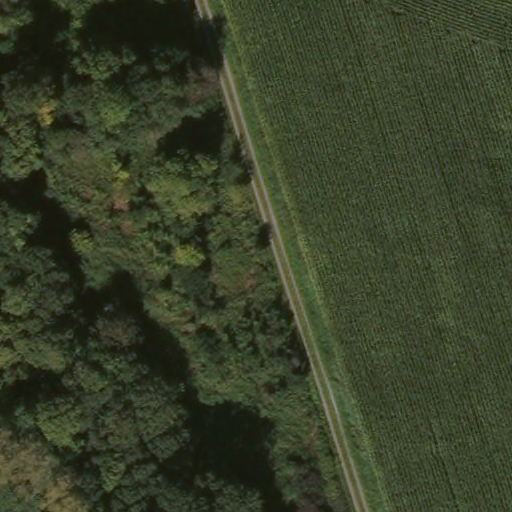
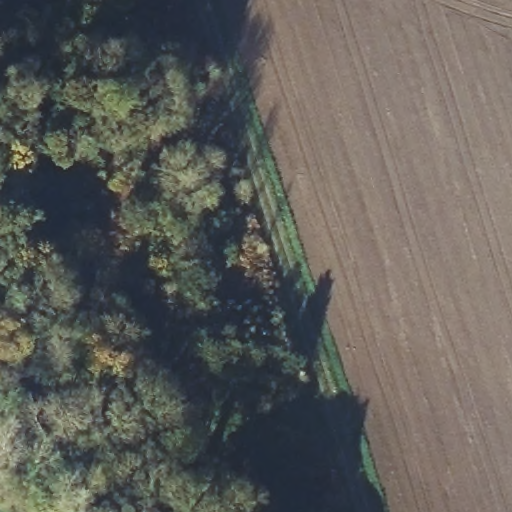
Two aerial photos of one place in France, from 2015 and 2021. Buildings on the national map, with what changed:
[]

